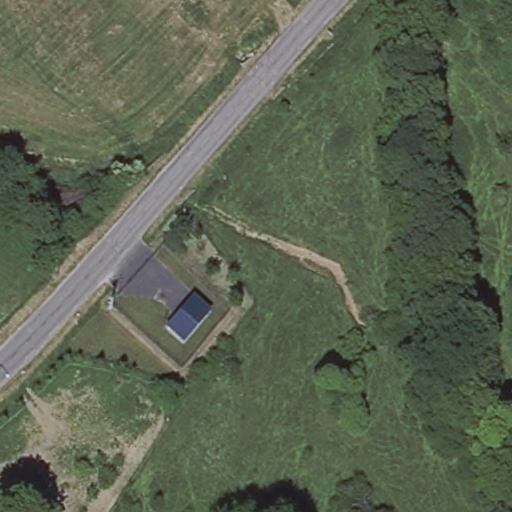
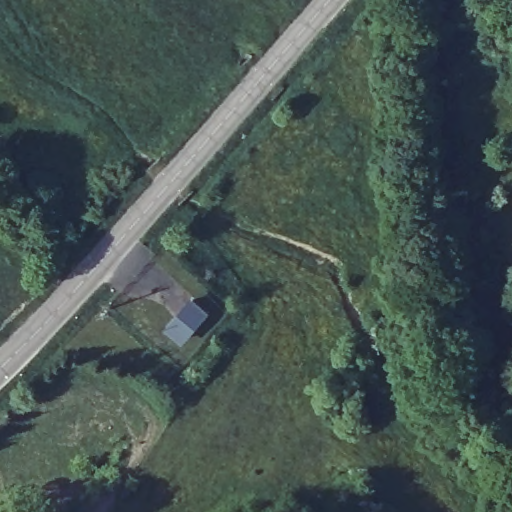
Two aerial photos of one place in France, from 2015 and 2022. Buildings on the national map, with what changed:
unchanged [(433,47),(436,87),(420,87),(417,49),(433,47)]
unchanged [(203,312),(180,340),(165,327),(189,300),(203,312)]

